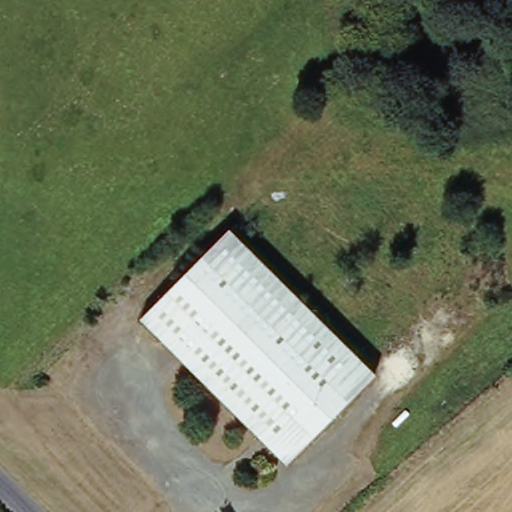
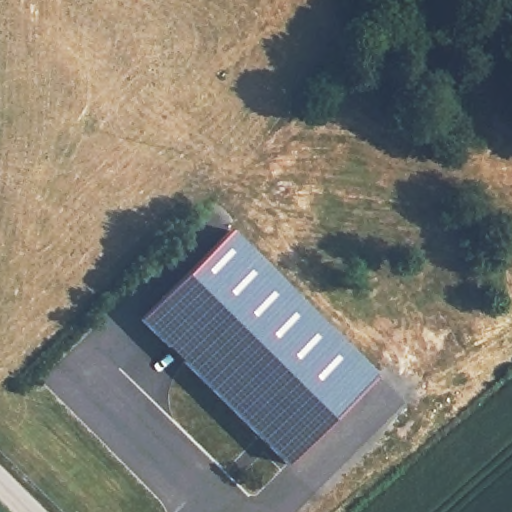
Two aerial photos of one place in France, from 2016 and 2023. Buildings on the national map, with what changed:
unchanged [(382,371),(292,461),(149,314),(237,225),(382,371)]

